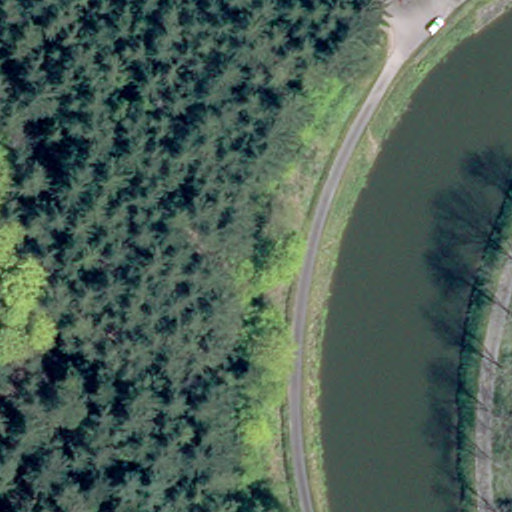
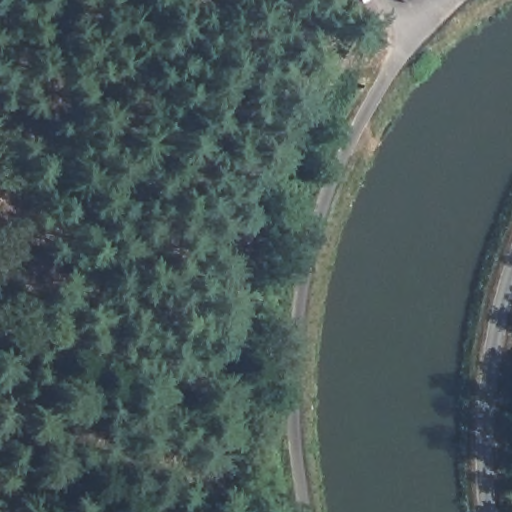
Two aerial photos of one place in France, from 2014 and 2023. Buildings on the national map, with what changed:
unchanged [(394,0),(411,0),(400,8),(394,0)]

